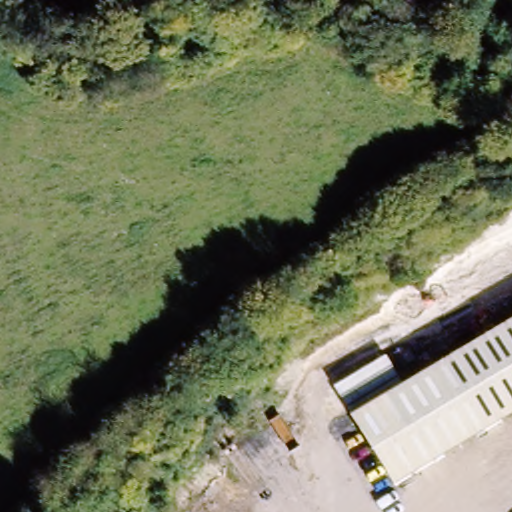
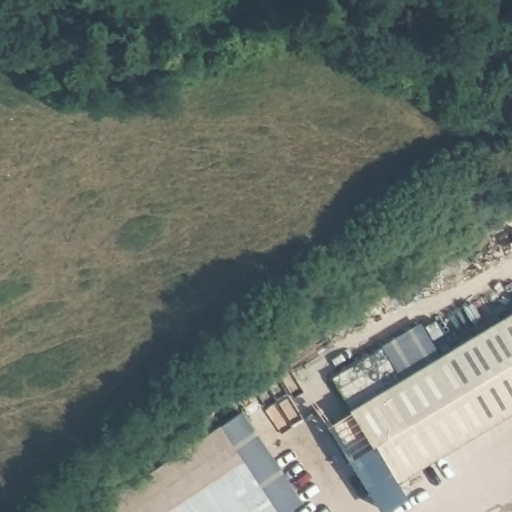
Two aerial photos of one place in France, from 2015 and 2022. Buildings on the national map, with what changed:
unchanged [(512,316),(512,415),(395,483),(346,412),(512,316)]
new [(302,510),(299,512),(117,512),(241,423),(302,510)]

